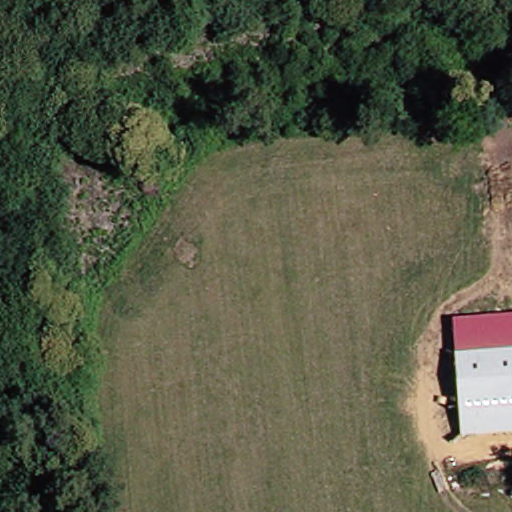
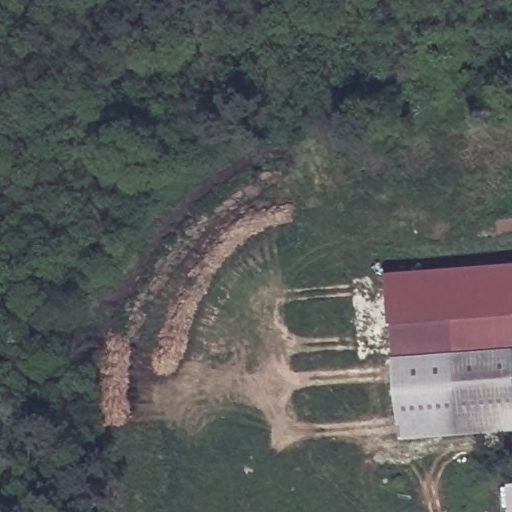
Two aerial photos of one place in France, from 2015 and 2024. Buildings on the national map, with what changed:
new [(389,273),(512,264),(512,314),(453,319),(454,353),(461,435),(402,440),(389,273)]
new [(454,353),(453,319),(512,314),(512,431),(461,435),(454,353)]
demolished [(512,411),(508,347),(512,347),(512,411)]
new [(512,484),(512,495),(511,484),(512,484)]

